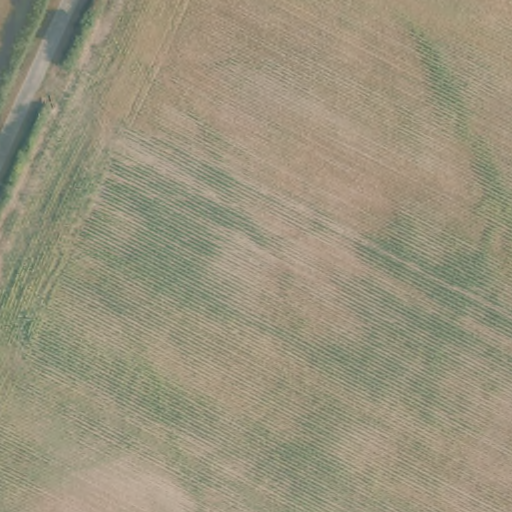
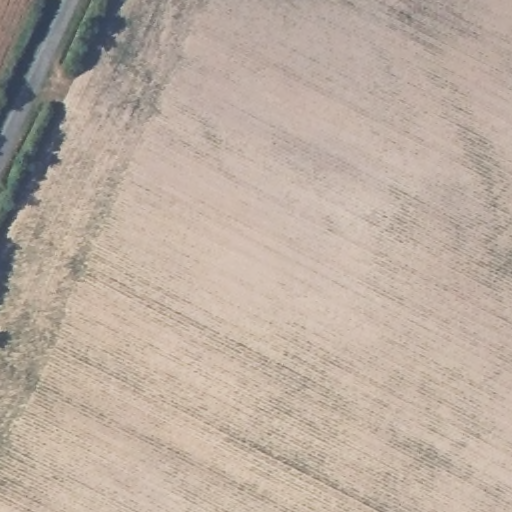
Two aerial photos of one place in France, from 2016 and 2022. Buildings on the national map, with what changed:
[]

